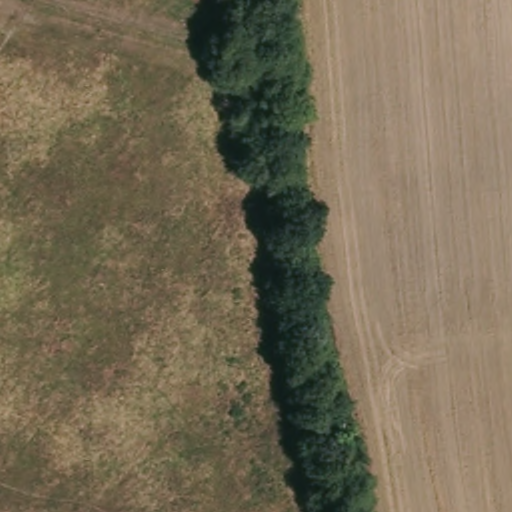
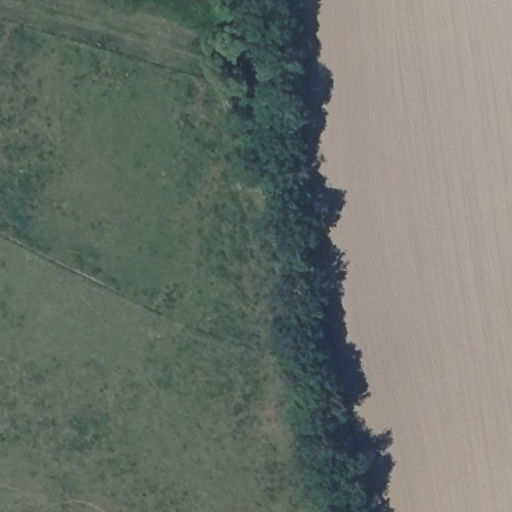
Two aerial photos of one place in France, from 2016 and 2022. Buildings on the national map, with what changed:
[]

